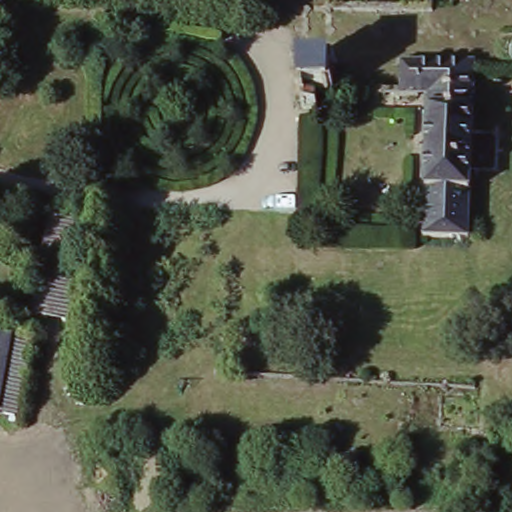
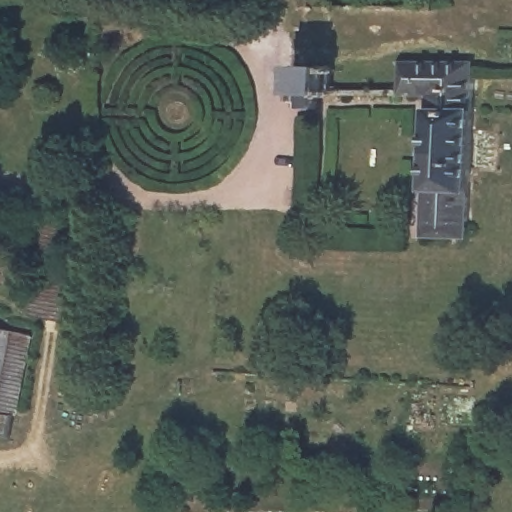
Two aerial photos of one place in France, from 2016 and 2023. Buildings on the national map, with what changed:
unchanged [(473,66),(468,245),(423,242),(427,100),(401,100),(400,67),(473,66)]
unchanged [(331,69),(338,77),(330,80),(330,92),(335,93),(336,101),(318,100),(319,112),(302,112),(303,101),(294,102),(294,95),(302,95),(302,77),(294,77),(293,70),(331,69)]
unchanged [(92,231),(77,327),(37,320),(53,224),(92,231)]
unchanged [(34,341),(19,420),(0,417),(0,335),(34,341)]

